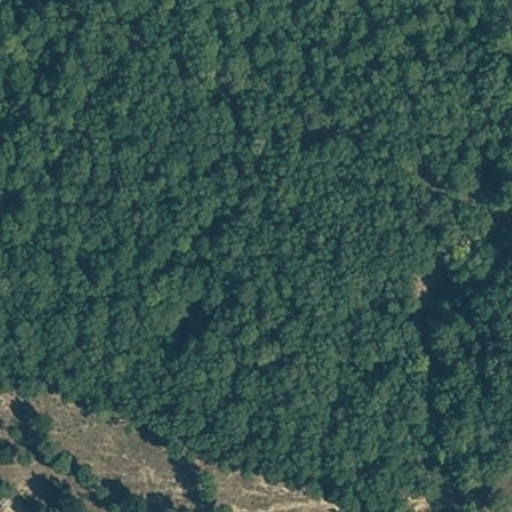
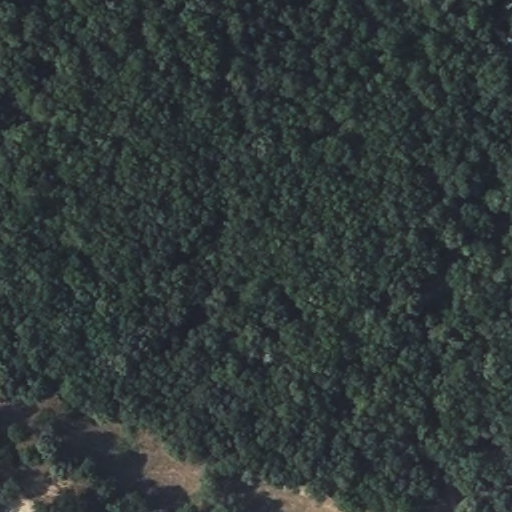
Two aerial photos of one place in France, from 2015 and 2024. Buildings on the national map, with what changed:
[]

